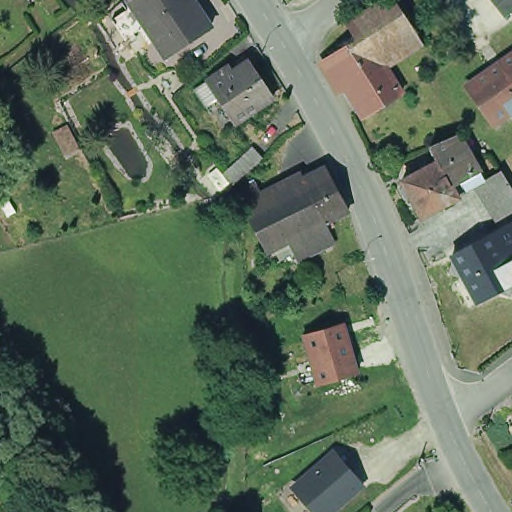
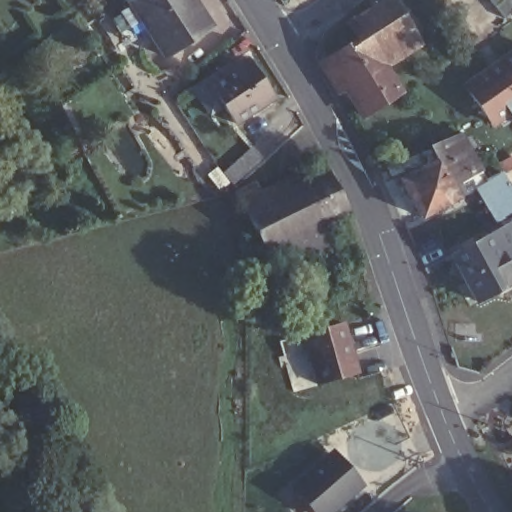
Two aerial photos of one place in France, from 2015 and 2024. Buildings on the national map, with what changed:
unchanged [(129,0),(200,0),(216,24),(172,54),(161,37),(156,40),(146,26),(131,36),(118,17),(133,7),(129,0)]
unchanged [(353,22),(388,0),(389,0),(400,18),(414,38),(418,45),(415,47),(414,45),(408,49),(404,44),(376,61),(383,72),(346,95),(325,62),(363,38),(353,22)]
unchanged [(225,66),(229,73),(252,58),(276,93),(236,119),(221,93),(216,96),(206,79),(225,66)]
unchanged [(471,92),(512,63),(512,116),(495,128),(471,92)]
unchanged [(383,72),(399,99),(361,122),(346,95),(383,72)]
unchanged [(436,161),(434,161),(428,145),(459,133),(470,153),(480,169),(450,186),(436,161)]
unchanged [(248,149),(259,160),(233,183),(222,171),(248,149)]
unchanged [(434,161),(436,161),(450,186),(456,197),(419,217),(411,200),(403,198),(398,190),(402,185),(399,180),(434,161)]
unchanged [(278,238),(261,246),(239,204),(231,188),(250,180),(258,195),(286,181),(319,164),(341,207),(319,217),(329,238),(317,244),(293,256),(283,235),(278,238)]
unchanged [(481,184),(501,172),(512,190),(512,209),(501,217),(481,184)]
unchanged [(512,220),(512,236),(506,224),(512,220)]
unchanged [(434,262),(506,224),(512,236),(512,283),(459,312),(434,262)]
unchanged [(301,332),(341,321),(355,371),(316,382),(301,332)]
unchanged [(336,451),(364,488),(333,512),(313,512),(291,484),(336,451)]

